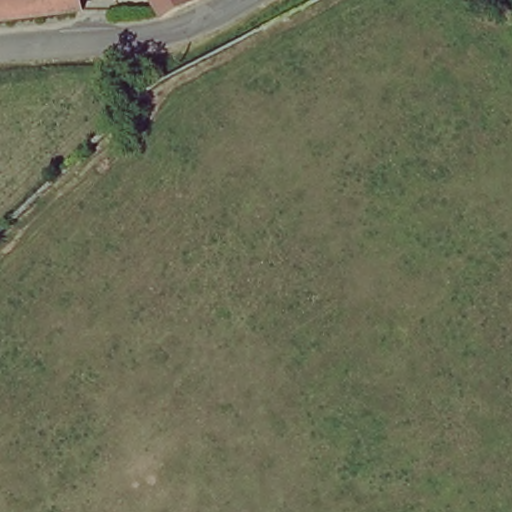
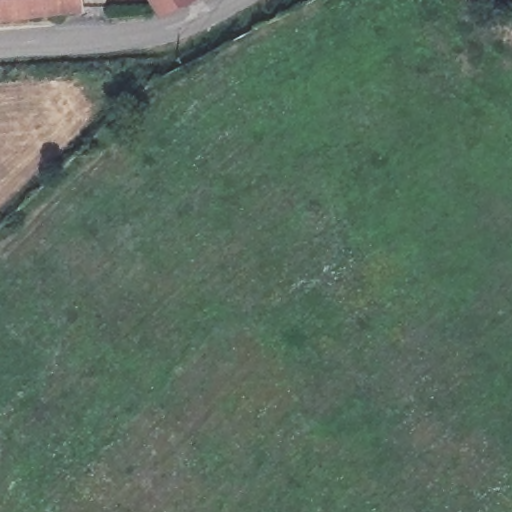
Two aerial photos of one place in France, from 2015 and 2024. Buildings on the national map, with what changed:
unchanged [(6,13),(0,14),(0,0),(80,0),(82,6),(47,10),(6,13)]
unchanged [(158,6),(149,7),(145,0),(173,0),(169,2),(158,6)]

